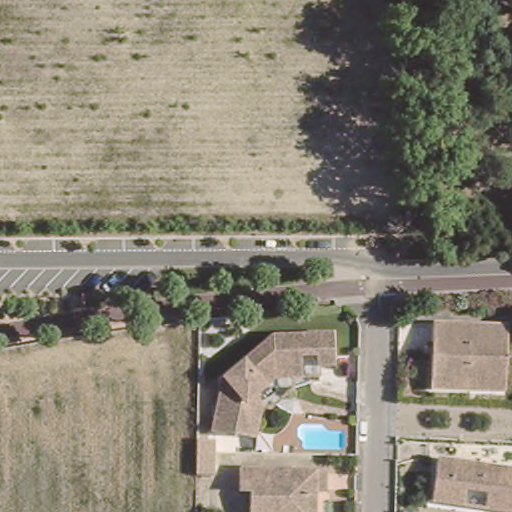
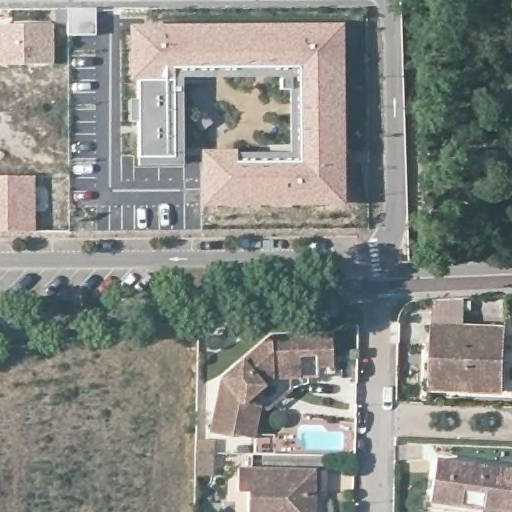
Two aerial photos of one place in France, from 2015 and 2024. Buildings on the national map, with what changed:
new [(95,7),(96,35),(66,36),(65,7),(95,7)]
new [(54,63),(0,64),(0,24),(53,23),(54,63)]
new [(137,78),(131,78),(130,25),(342,24),(345,205),(201,208),(201,150),(236,150),(237,153),(290,151),(290,89),(282,90),(281,77),(183,77),(182,164),(139,165),(137,78)]
new [(0,176),(34,176),(35,233),(0,233),(0,176)]
new [(402,320),(426,321),(426,386),(400,385),(402,320)]
unchanged [(505,387),(431,386),(430,321),(505,323),(505,387)]
unchanged [(265,335),(325,337),(323,371),(307,370),(307,381),(286,380),(265,380),(255,391),(245,391),(246,402),(262,402),(261,433),(240,432),(240,438),(212,437),(214,383),(265,335)]
unchanged [(487,510),(487,494),(463,494),(463,509),(431,508),(432,463),(512,466),(512,510),(487,510)]
unchanged [(233,492),(235,468),(325,471),(323,495),(312,494),(311,512),(246,512),(246,492),(233,492)]

